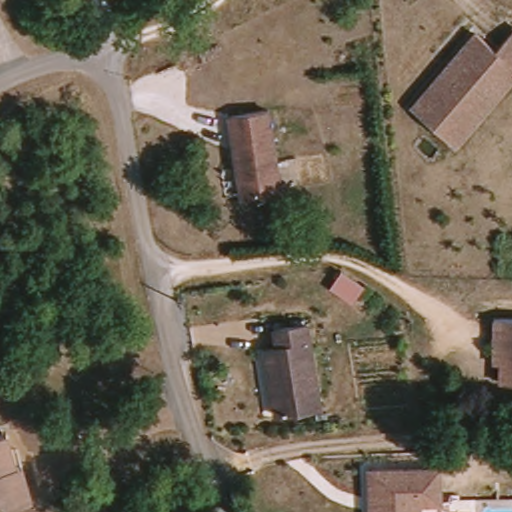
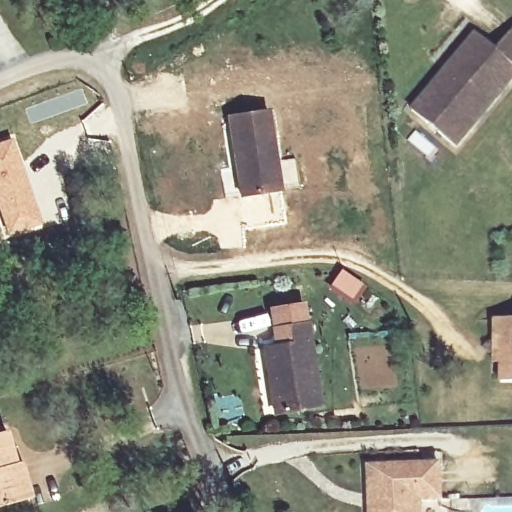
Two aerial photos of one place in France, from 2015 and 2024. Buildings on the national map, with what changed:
unchanged [(425,97),(445,72),(450,66),(477,33),(497,50),(512,32),(512,80),(507,86),(472,128),(456,147),(426,121),(413,110),(425,97)]
unchanged [(266,111),(278,190),(238,196),(226,117),(266,111)]
new [(42,225),(6,237),(0,222),(0,140),(13,136),(42,225)]
unchanged [(501,382),(501,363),(493,363),(495,336),(495,320),(512,320),(512,382),(501,382)]
unchanged [(272,348),(283,346),(281,329),(313,324),(316,341),(326,407),(282,414),(278,391),(275,371),(272,348)]
unchanged [(17,501),(0,505),(0,433),(5,432),(13,464),(20,463),(29,498),(17,501)]
unchanged [(441,500),(420,501),(421,512),(370,512),(368,467),(440,464),(441,500)]

